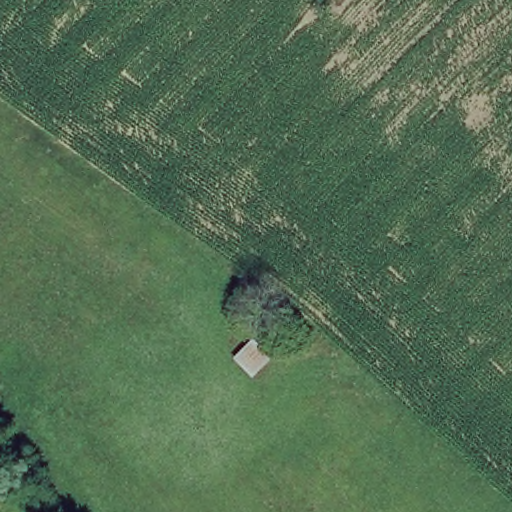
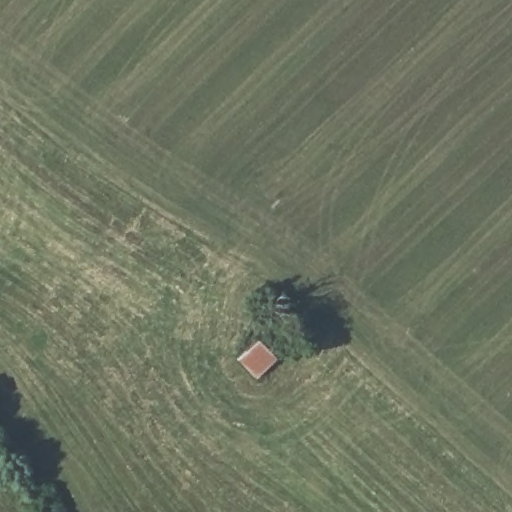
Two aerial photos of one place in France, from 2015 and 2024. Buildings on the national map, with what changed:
unchanged [(230,361),(255,340),(272,359),(252,380),(230,361)]

